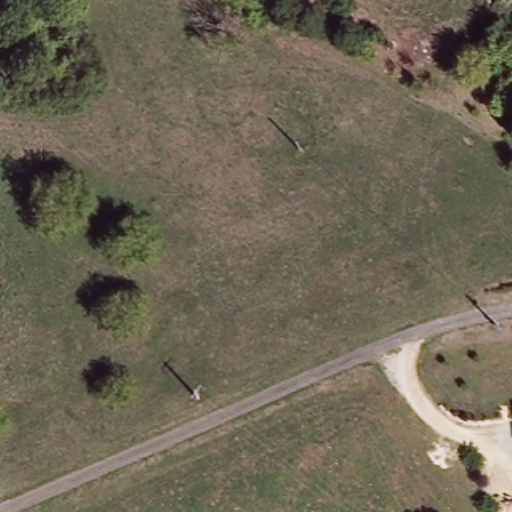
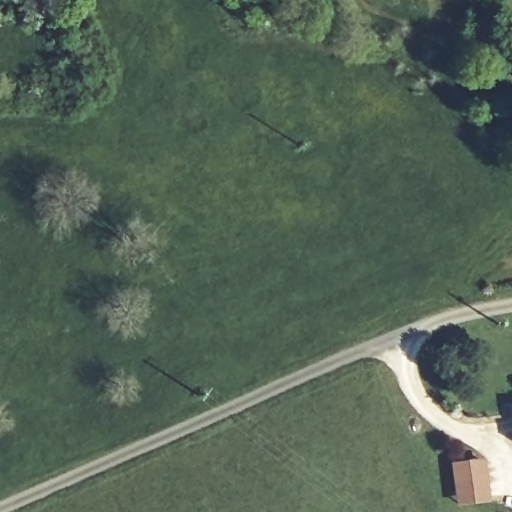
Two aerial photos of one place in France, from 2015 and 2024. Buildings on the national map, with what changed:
new [(489,504),(455,509),(449,463),(483,459),(489,504)]

